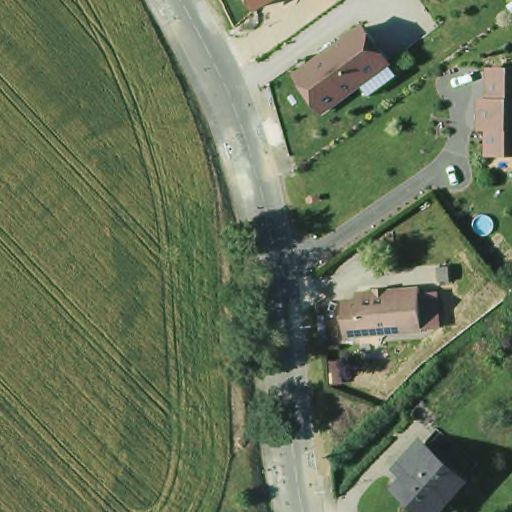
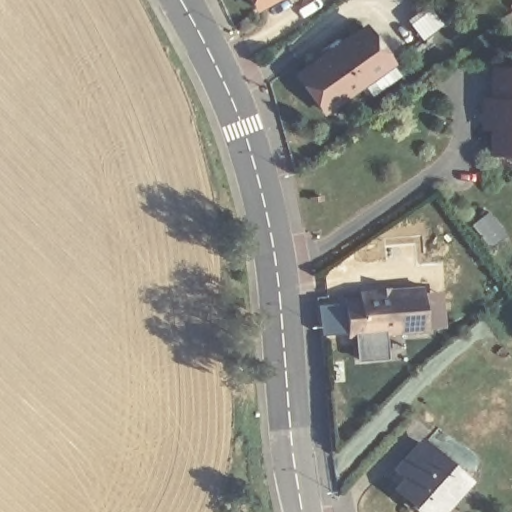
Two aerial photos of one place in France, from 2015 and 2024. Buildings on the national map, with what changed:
unchanged [(260,12),(252,0),(277,0),(260,12)]
unchanged [(325,115),(295,76),(365,25),(393,64),(325,115)]
unchanged [(492,74),(512,74),(512,153),(490,152),(492,74)]
unchanged [(362,300),(424,293),(444,291),(447,332),(427,335),(350,342),(347,307),(362,305),(362,300)]
unchanged [(426,512),(396,485),(428,450),(469,487),(446,512),(426,512)]

